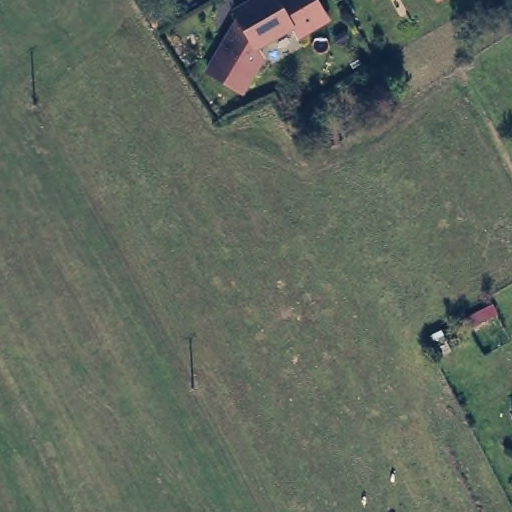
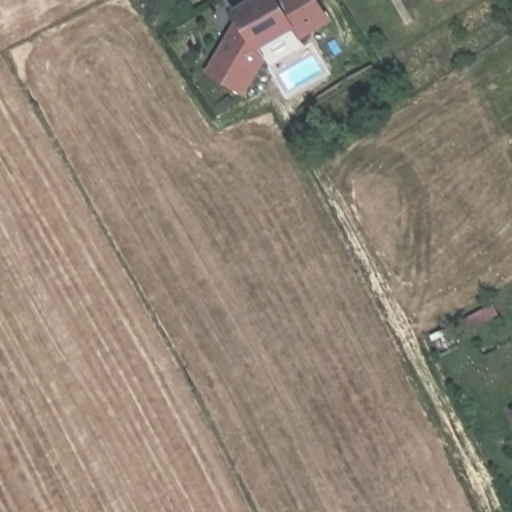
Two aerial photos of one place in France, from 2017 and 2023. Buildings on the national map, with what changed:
unchanged [(297,35),(291,25),(256,47),(262,58),(242,91),(206,70),(238,16),(234,8),(248,0),(316,0),(325,17),(297,35)]

